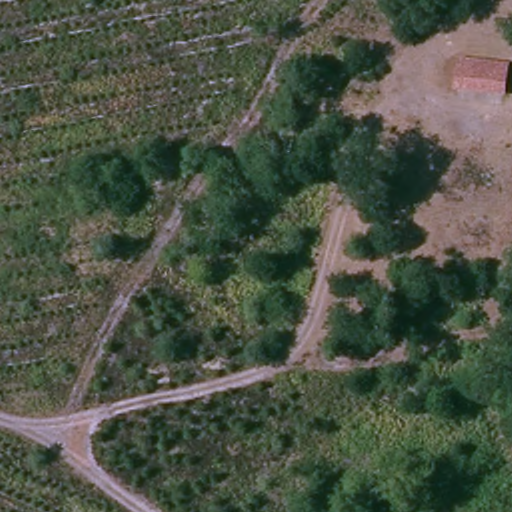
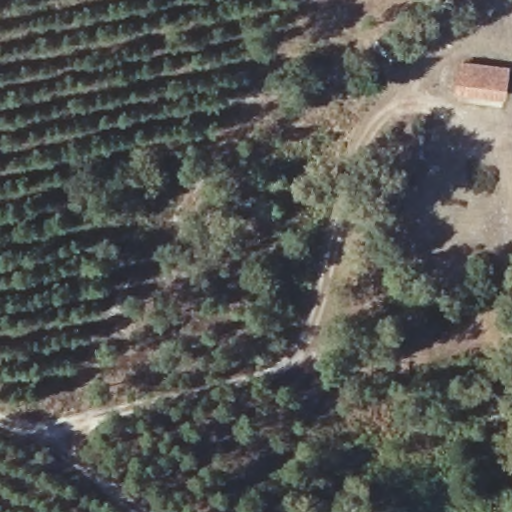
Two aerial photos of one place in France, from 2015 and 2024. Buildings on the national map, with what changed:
unchanged [(455,62),(501,67),(498,97),(452,92),(455,62)]

